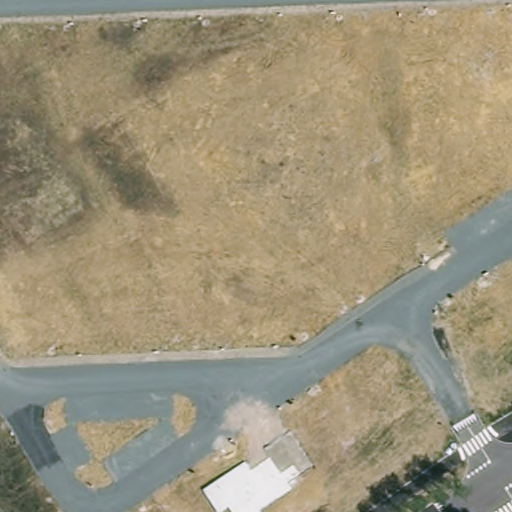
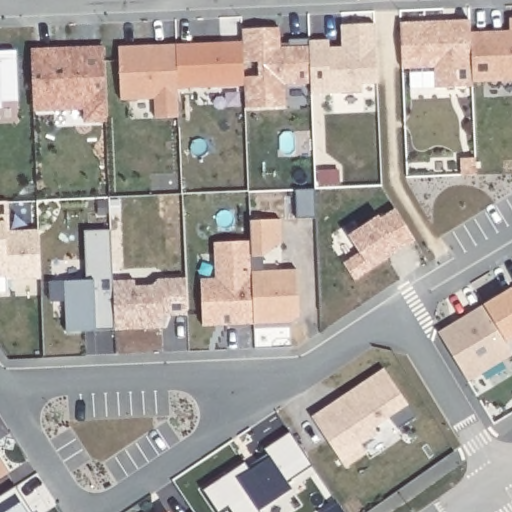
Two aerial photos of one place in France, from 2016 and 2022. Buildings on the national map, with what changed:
new [(402,69),(400,23),(444,21),(470,20),(471,32),(492,32),(511,31),(510,19),(512,18),(512,81),(473,82),(473,86),(435,88),(411,89),(410,69),(402,69)]
new [(330,49),(343,48),(342,25),(375,24),(378,84),(363,85),(363,92),(312,95),(311,84),(310,41),(330,40),(330,49)]
new [(280,44),(290,43),(290,40),(310,39),(310,41),(311,84),(285,85),(286,107),(245,109),(245,86),(245,77),(260,76),(259,62),(244,62),(243,42),(242,30),(280,28),(280,44)]
new [(214,43),(243,42),(244,62),(245,77),(245,86),(178,89),(176,45),(195,44),(214,43)]
new [(150,45),(176,45),(178,89),(179,117),(155,119),(155,99),(121,100),(119,47),(141,46),(150,45)]
new [(34,110),(31,50),(52,50),(75,49),(104,47),(107,120),(86,121),(85,108),(55,110),(34,110)]
new [(0,101),(0,51),(15,51),(17,100),(0,101)]
new [(9,231),(39,230),(40,278),(6,280),(6,276),(0,277),(0,202),(8,201),(9,222),(9,231)]
new [(378,215),(380,219),(393,209),(413,240),(399,250),(372,268),(355,280),(345,262),(358,249),(348,235),(355,217),(378,215)]
new [(254,325),(251,242),(250,221),(281,220),(282,241),(263,256),(264,271),(297,270),(300,317),(291,323),(280,324),(272,324),(254,325)]
new [(215,280),(214,244),(251,242),(254,325),(203,327),(201,280),(215,280)]
new [(67,332),(66,306),(87,305),(85,251),(112,250),(113,281),(115,330),(95,331),(85,331),(67,332)]
new [(162,328),(115,330),(113,281),(135,280),(135,286),(152,286),(158,280),(186,278),(187,315),(171,316),(167,328),(162,328)]
new [(512,289),(512,341),(507,344),(484,305),(512,289)]
new [(484,305),(507,344),(512,352),(512,356),(468,382),(438,333),(484,305)]
new [(345,396),(385,370),(417,418),(398,430),(390,417),(373,429),(377,435),(361,445),(367,454),(345,468),(312,417),(337,401),(345,396)]
new [(248,466),(267,454),(264,449),(290,432),(313,466),(287,483),(292,490),(260,511),(260,512),(232,512),(229,507),(222,512),(217,512),(202,490),(245,462),(248,466)]
new [(0,478),(0,462),(7,473),(0,478)]
new [(0,496),(15,486),(32,512),(0,512),(0,496)]
new [(337,503),(344,512),(324,512),(337,503)]

